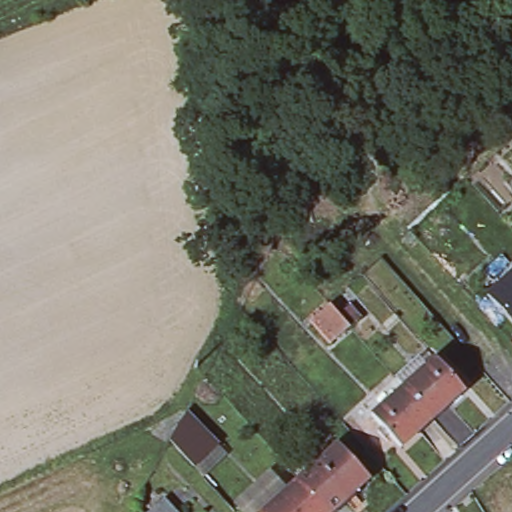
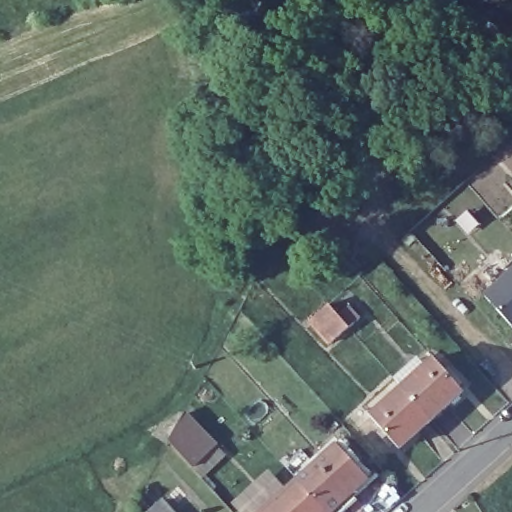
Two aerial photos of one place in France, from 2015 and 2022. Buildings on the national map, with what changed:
unchanged [(512,324),(486,295),(512,272),(512,324)]
unchanged [(330,302),(336,310),(348,300),(363,316),(331,344),(310,320),(330,302)]
unchanged [(439,357),(468,390),(435,418),(406,386),(439,357)]
unchanged [(403,447),(375,415),(406,386),(435,418),(403,447)]
unchanged [(181,427),(193,437),(203,428),(221,449),(196,471),(172,445),(181,427)]
unchanged [(342,442),(373,476),(333,512),(302,477),(342,442)]
unchanged [(243,493),(272,470),(290,488),(302,477),(333,512),(259,512),(243,493)]
unchanged [(160,502),(170,512),(149,512),(160,502)]

